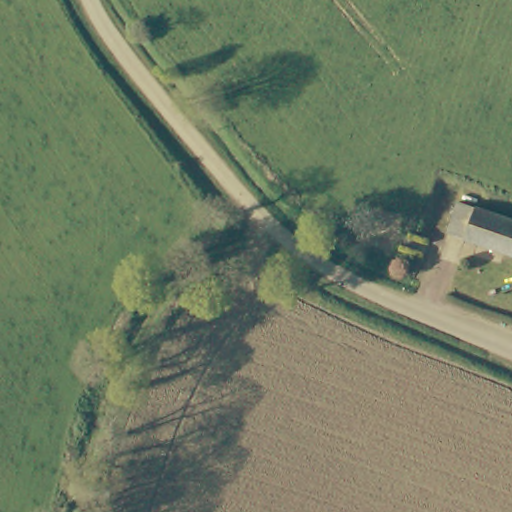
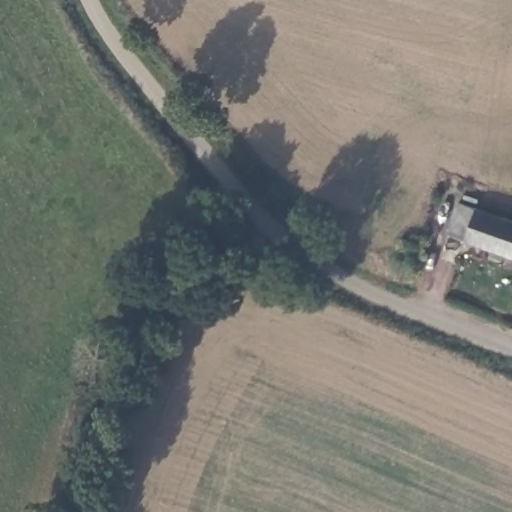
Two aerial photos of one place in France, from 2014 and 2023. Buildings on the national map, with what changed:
unchanged [(458,199),(512,218),(512,256),(444,231),(458,199)]

